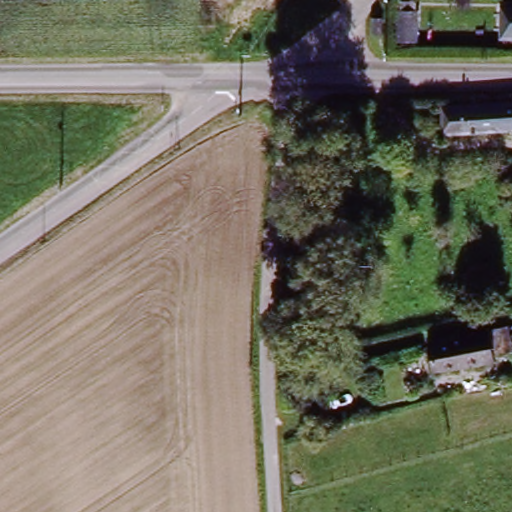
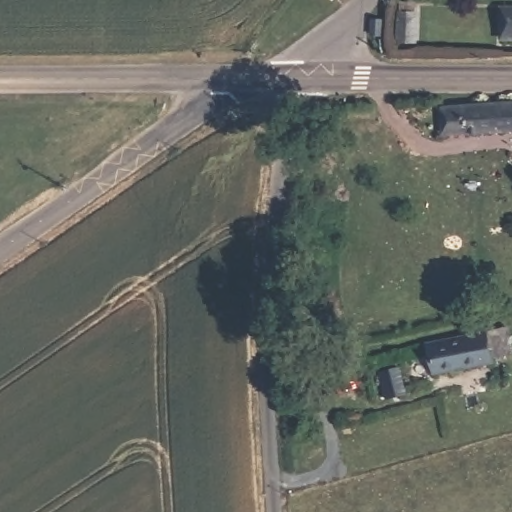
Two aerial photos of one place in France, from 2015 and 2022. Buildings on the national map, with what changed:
unchanged [(420,8),(419,43),(401,43),(401,8),(420,8)]
unchanged [(512,9),(512,42),(503,42),(503,33),(502,9),(512,9)]
unchanged [(439,110),(512,100),(512,126),(443,136),(439,110)]
unchanged [(512,358),(436,379),(423,346),(510,325),(512,333),(512,358)]

